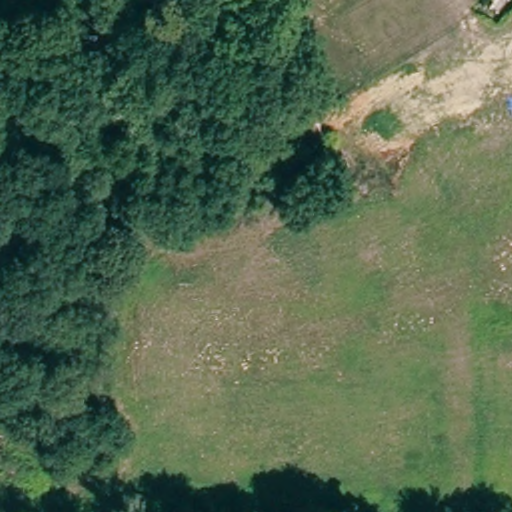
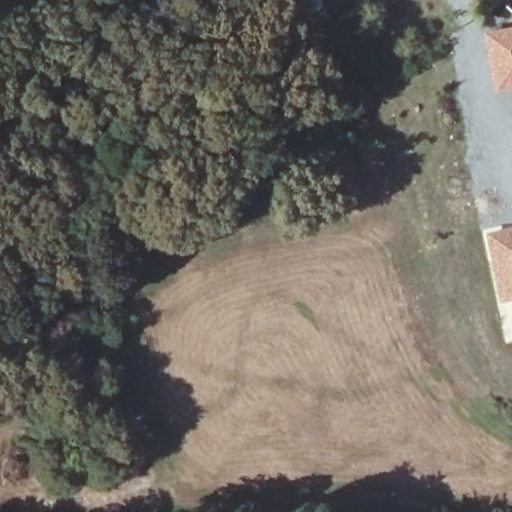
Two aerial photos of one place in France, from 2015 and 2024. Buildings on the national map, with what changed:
new [(496,90),(483,32),(512,26),(512,88),(496,90)]
new [(500,302),(483,231),(512,226),(512,300),(500,302)]

